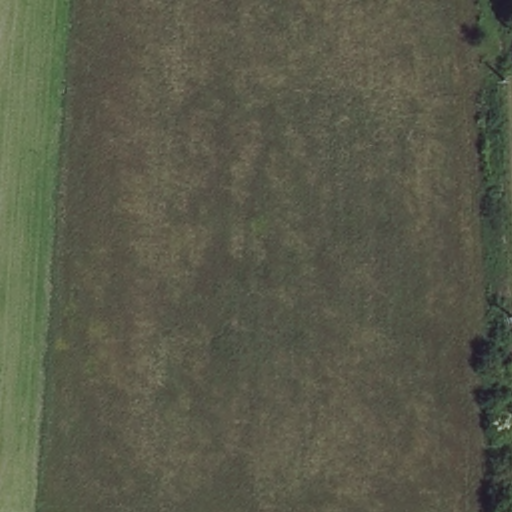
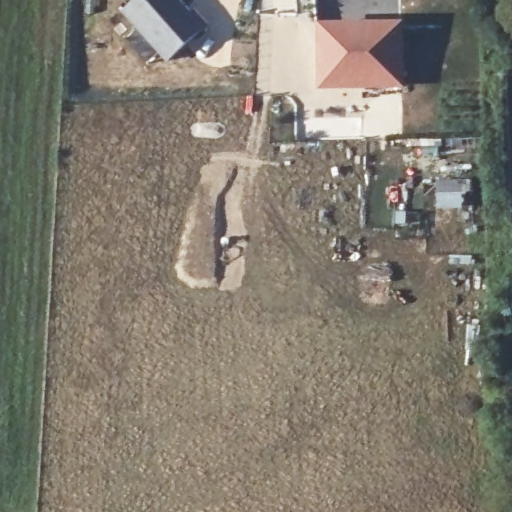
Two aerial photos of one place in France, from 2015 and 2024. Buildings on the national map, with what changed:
new [(135,0),(183,0),(208,25),(166,62),(122,12),(135,0)]
new [(317,90),(317,22),(404,22),(406,89),(317,90)]

